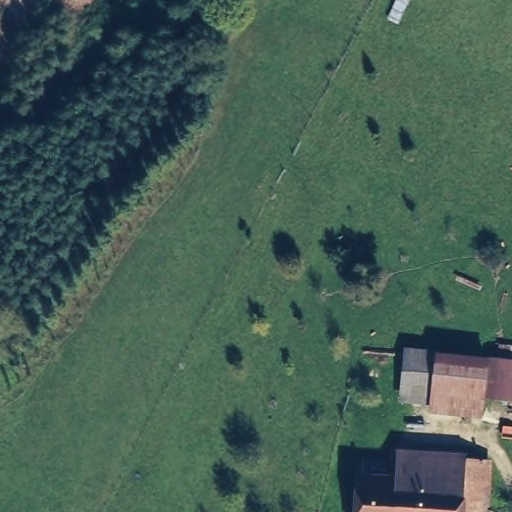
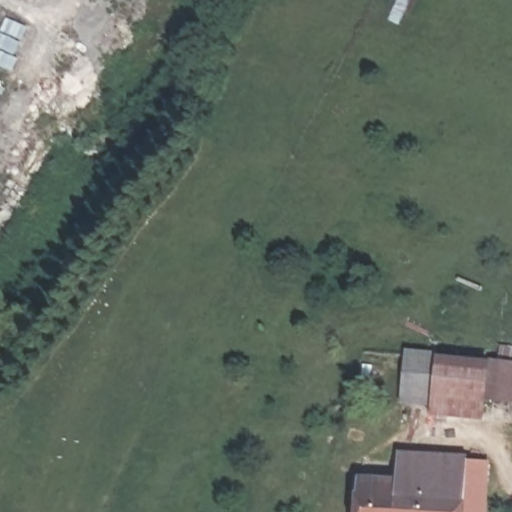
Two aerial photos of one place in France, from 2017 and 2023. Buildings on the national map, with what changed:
unchanged [(412,348),(495,357),(495,353),(512,356),(512,394),(488,392),(488,397),(409,388),(412,348)]
unchanged [(412,463),(412,456),(426,457),(425,464),(487,468),(484,512),(357,512),(359,485),(362,485),(362,472),(397,475),(398,462),(412,463)]

